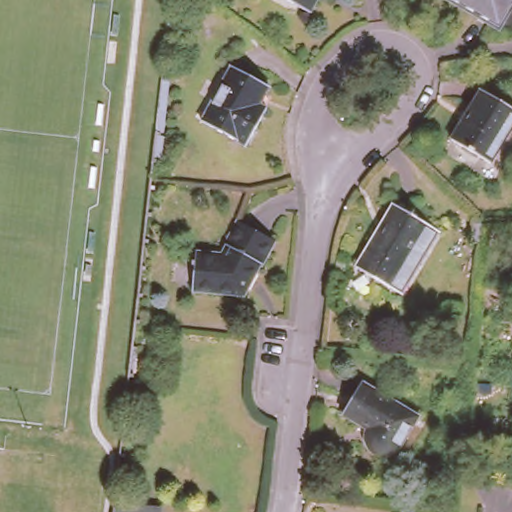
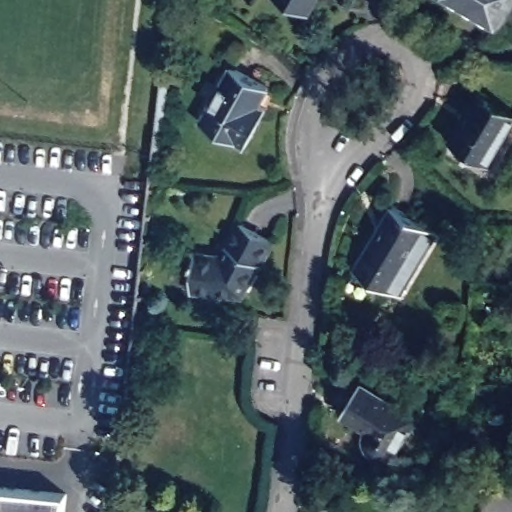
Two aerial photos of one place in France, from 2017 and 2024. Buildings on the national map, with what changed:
unchanged [(287,0),(321,0),(314,14),(287,0)]
unchanged [(458,0),(512,0),(512,15),(504,28),(458,0)]
unchanged [(261,104),(269,109),(248,145),(204,119),(236,67),(271,89),(261,104)]
unchanged [(453,145),(484,95),(512,113),(512,132),(491,168),(453,145)]
unchanged [(403,295),(356,267),(394,204),(440,232),(403,295)]
unchanged [(241,225),(274,244),(246,300),(194,294),(199,255),(223,257),(241,225)]
unchanged [(399,453),(394,455),(389,456),(384,455),(379,452),(374,448),(371,442),(370,436),(371,429),(376,424),(351,409),(371,380),(426,415),(404,449),(399,453)]
new [(69,487),(66,512),(0,512),(0,479),(69,487)]
unchanged [(162,512),(112,512),(113,505),(163,511),(162,512)]

